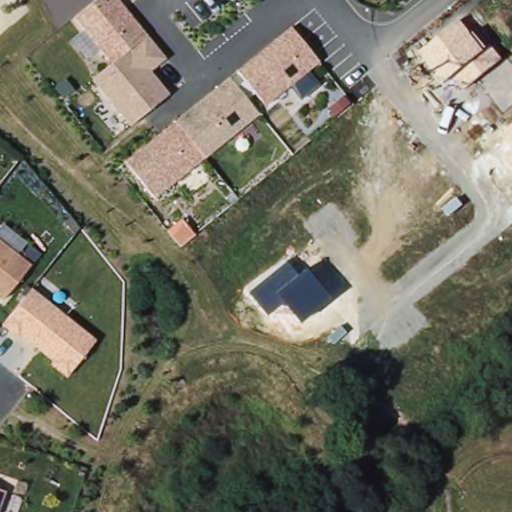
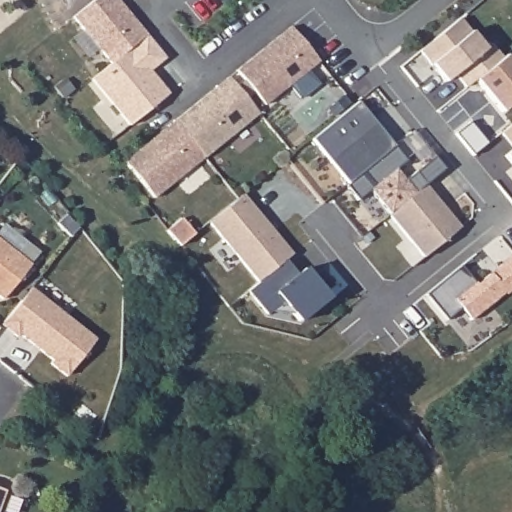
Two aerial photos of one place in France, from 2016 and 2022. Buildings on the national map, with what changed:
unchanged [(169,95),(130,125),(91,77),(111,61),(74,15),(91,0),(119,0),(166,59),(150,71),(169,95)]
unchanged [(455,76),(444,83),(430,66),(419,53),(460,19),(472,34),(485,49),(492,45),(503,58),(466,88),(455,76)]
unchanged [(265,105),(237,68),(291,27),(319,61),(265,105)]
new [(503,58),(512,67),(512,103),(501,113),(475,81),(503,58)]
unchanged [(152,196),(124,160),(230,78),(257,114),(152,196)]
new [(360,101),(375,119),(379,125),(396,145),(350,183),(313,138),(356,104),(360,101)]
new [(472,121),(490,143),(475,155),(457,133),(472,121)]
unchanged [(512,125),(512,146),(502,133),(512,125)]
new [(350,183),(396,145),(408,160),(398,168),(407,179),(436,155),(447,168),(427,184),(391,213),(372,189),(359,199),(347,185),(350,183)]
unchanged [(505,156),(512,150),(512,165),(505,156)]
new [(391,213),(427,184),(462,227),(425,257),(390,214),(391,213)]
new [(258,285),(210,224),(244,195),(293,255),(286,264),(258,285)]
unchanged [(1,303),(0,302),(0,244),(29,268),(1,303)]
new [(478,284),(492,273),(499,267),(512,257),(512,290),(507,294),(506,292),(472,320),(462,308),(448,320),(427,294),(462,265),(478,284)]
unchanged [(283,305),(267,317),(247,293),(286,264),(295,276),(305,269),(330,299),(299,325),(283,305)]
unchanged [(95,343),(70,376),(5,323),(31,292),(95,343)]
unchanged [(0,490),(4,492),(0,502),(0,490)]

